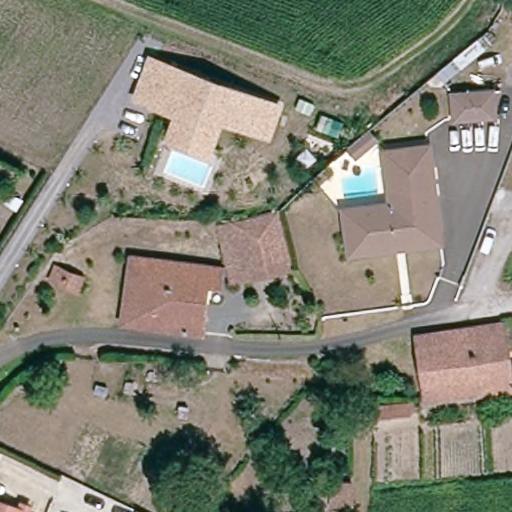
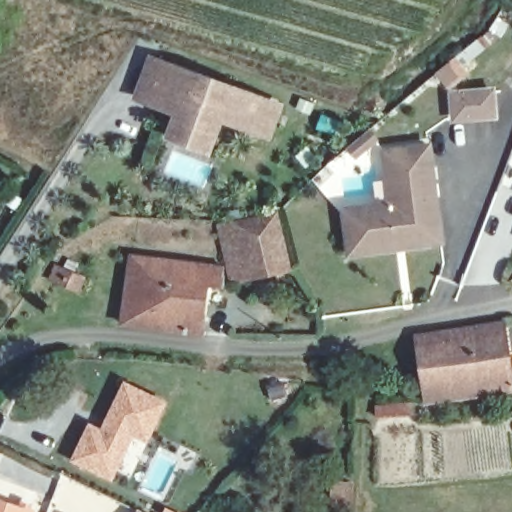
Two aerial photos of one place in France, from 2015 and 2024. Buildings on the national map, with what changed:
unchanged [(173,109),(160,104),(136,95),(150,55),(275,100),(264,131),(217,114),(211,130),(205,146),(165,132),(171,116),(173,109)]
unchanged [(496,91),(498,115),(458,119),(456,95),(496,91)]
unchanged [(368,145),(349,161),(342,153),(353,144),(361,136),(368,145)]
unchanged [(344,255),(339,216),(386,210),(382,185),(379,157),(395,155),(423,151),(425,170),(431,207),(436,247),(426,249),(403,252),(388,255),(363,258),(345,260),(344,255)]
unchanged [(219,227),(276,215),(289,270),(231,283),(219,227)]
unchanged [(199,335),(123,324),(133,257),(225,268),(225,287),(210,287),(203,335),(199,335)]
unchanged [(50,281),(56,267),(87,280),(81,294),(50,281)]
unchanged [(503,323),(512,374),(512,390),(427,402),(423,377),(417,336),(461,330),(503,323)]
new [(101,429),(122,381),(166,401),(146,443),(133,436),(111,483),(69,463),(88,423),(101,429)]
unchanged [(29,512),(0,512),(0,502),(19,508),(29,512)]

